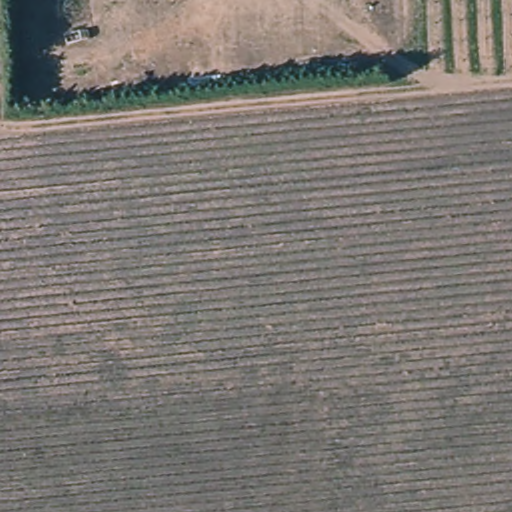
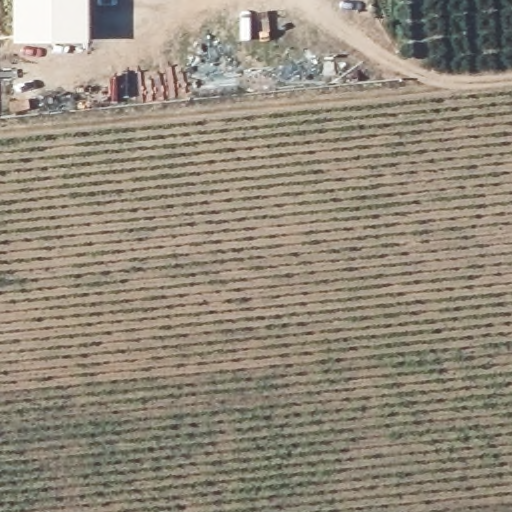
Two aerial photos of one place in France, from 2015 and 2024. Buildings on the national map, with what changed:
new [(90,0),(90,40),(14,40),(14,0),(90,0)]

